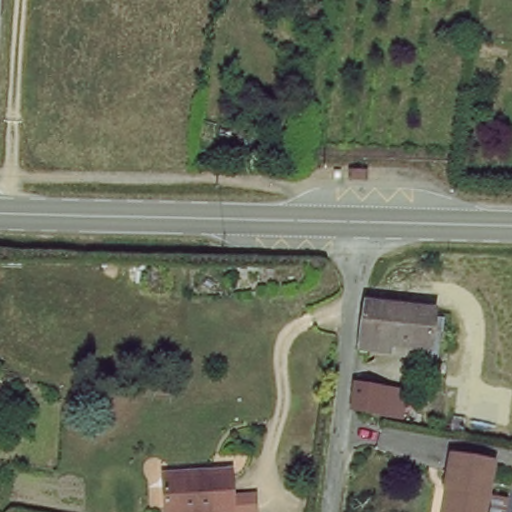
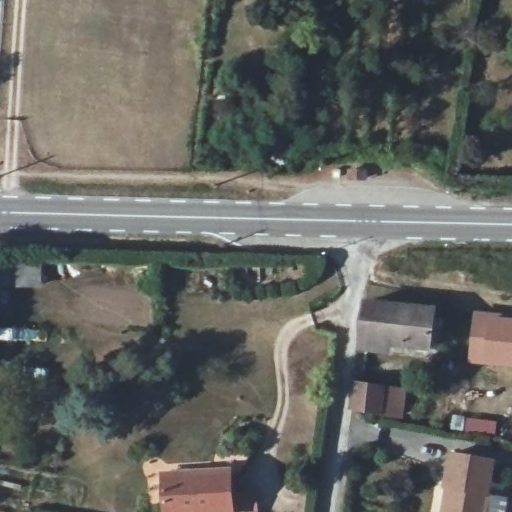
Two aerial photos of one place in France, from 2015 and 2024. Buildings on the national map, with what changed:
unchanged [(435,313),(430,349),(368,341),(374,305),(435,313)]
new [(473,310),(512,316),(512,367),(467,362),(473,310)]
unchanged [(385,383),(383,410),(357,407),(362,380),(385,383)]
new [(451,414),(497,420),(495,435),(449,430),(451,414)]
unchanged [(455,450),(498,457),(489,512),(445,512),(450,480),(455,450)]
unchanged [(167,512),(165,487),(165,477),(213,475),(233,474),(236,512),(167,512)]

